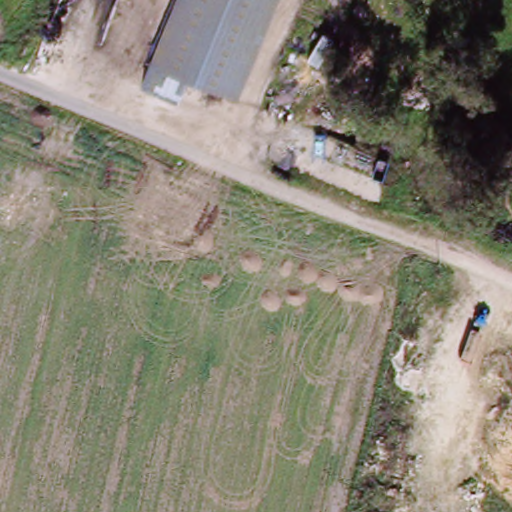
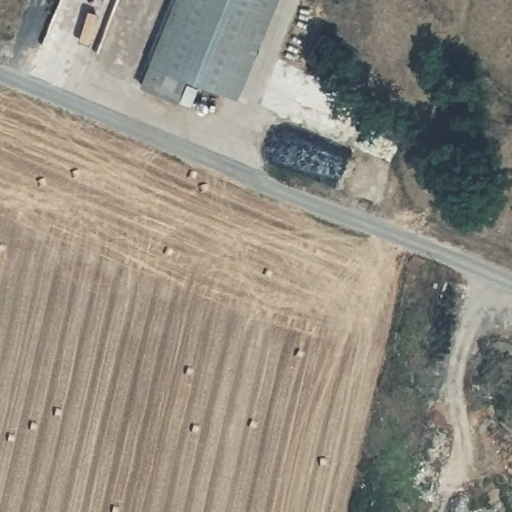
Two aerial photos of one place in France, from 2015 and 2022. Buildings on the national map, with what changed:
unchanged [(226,98),(185,81),(176,105),(141,91),(150,68),(178,0),(266,0),(226,98)]

